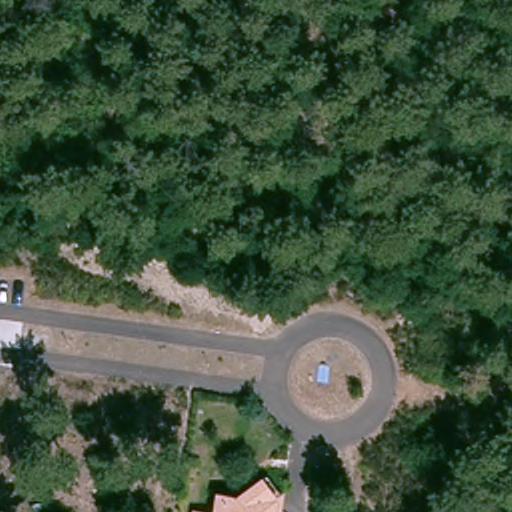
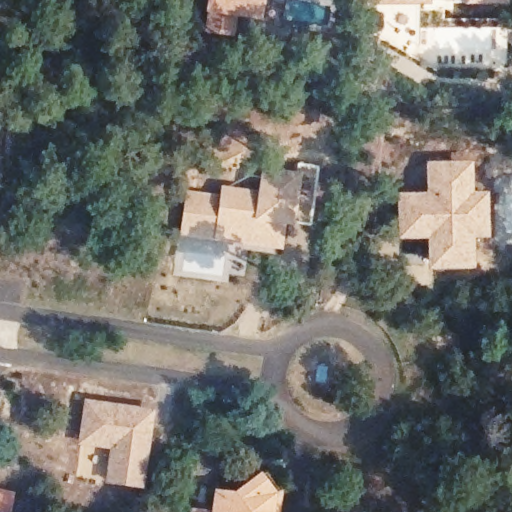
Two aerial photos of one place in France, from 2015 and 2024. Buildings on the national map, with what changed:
new [(237,17),(237,37),(205,36),(206,13),(208,0),(264,0),(261,21),(237,17)]
new [(375,4),(375,0),(431,0),(430,7),(375,4)]
new [(488,239),(474,240),(473,270),(427,270),(426,240),(399,240),(398,194),(426,194),(426,162),(473,162),(475,193),(486,192),(488,239)]
new [(220,193),(221,186),(258,187),(261,169),(298,172),(300,165),(316,167),(311,226),(295,222),(294,226),(285,225),(281,251),(213,241),(180,237),(186,191),(220,193)]
new [(157,408),(147,488),(106,483),(111,448),(81,445),(86,397),(157,408)]
unchanged [(212,510),(215,491),(236,493),(263,472),(279,492),(286,489),(283,512),(193,512),(194,508),(212,510)]

